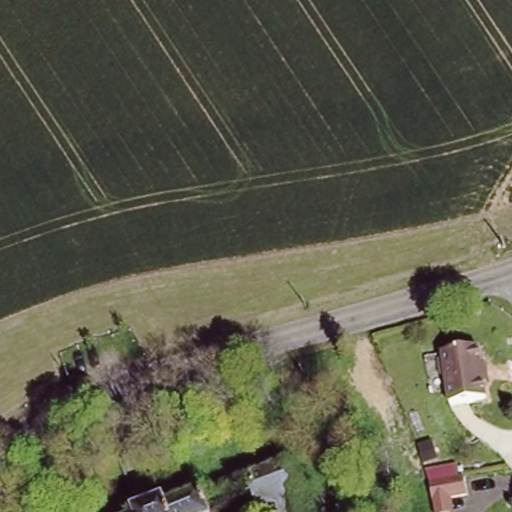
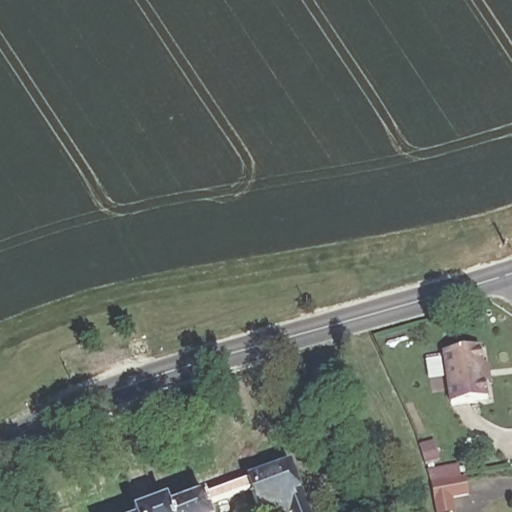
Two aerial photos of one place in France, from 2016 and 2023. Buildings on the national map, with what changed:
unchanged [(476,370),(482,368),(484,387),(479,388),(481,402),(445,408),(436,357),(473,351),(476,370)]
unchanged [(287,461),(304,505),(291,511),(288,512),(257,512),(243,476),(287,461)]
unchanged [(430,501),(427,484),(462,477),(464,494),(447,497),(449,512),(446,512),(432,512),(430,501)]
unchanged [(133,503),(138,502),(156,496),(161,494),(164,502),(201,491),(209,512),(136,512),(133,503)]
unchanged [(291,511),(304,505),(307,512),(291,512),(291,511)]

